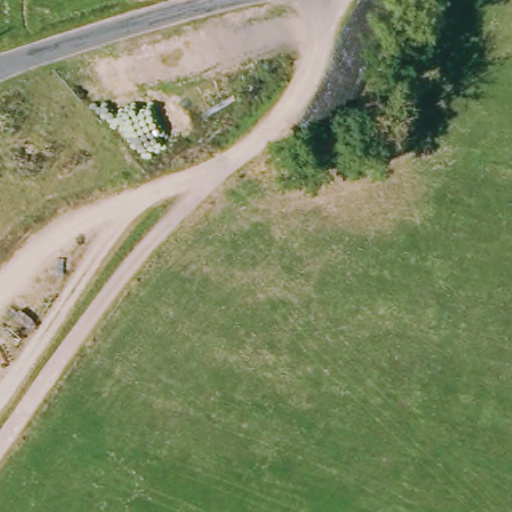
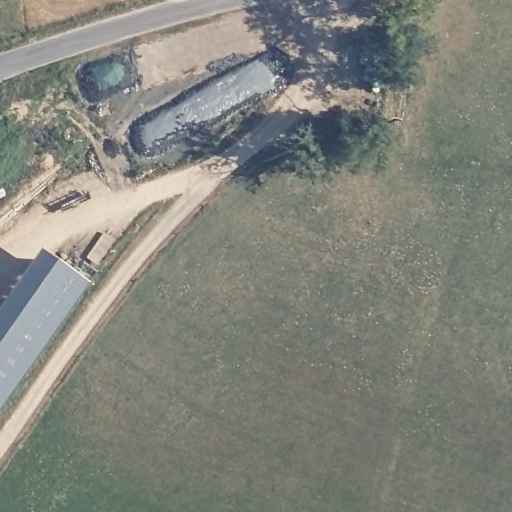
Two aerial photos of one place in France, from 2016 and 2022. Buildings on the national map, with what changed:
new [(0,409),(0,307),(40,251),(89,284),(0,409)]

